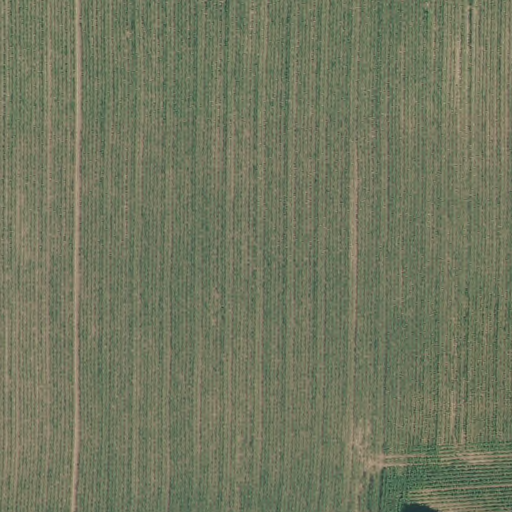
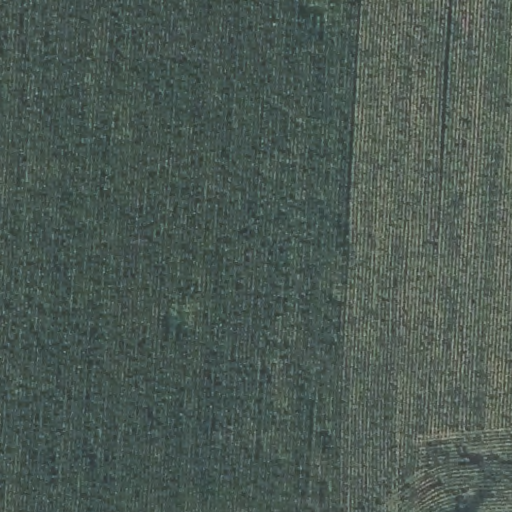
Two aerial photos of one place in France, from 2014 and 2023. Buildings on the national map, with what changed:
[]

